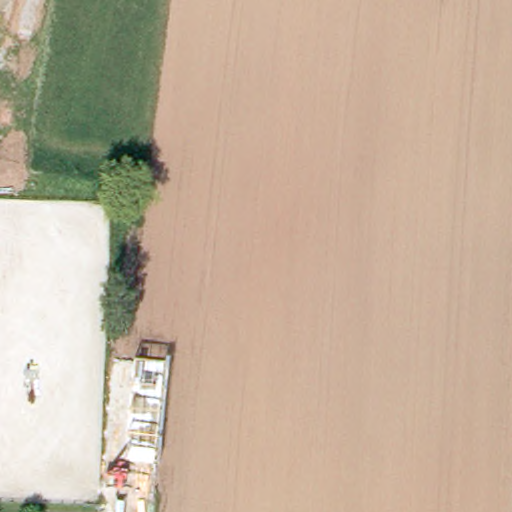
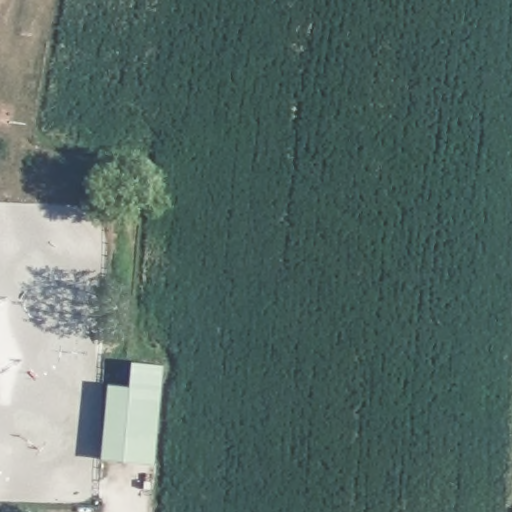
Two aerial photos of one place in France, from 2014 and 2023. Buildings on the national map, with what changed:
new [(101,457),(108,383),(131,386),(133,361),(163,365),(155,462),(101,457)]

